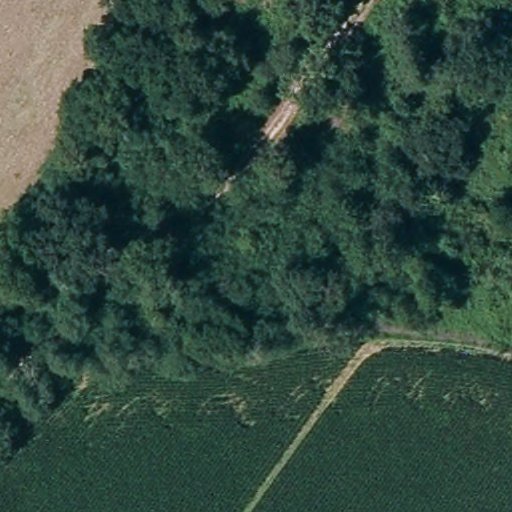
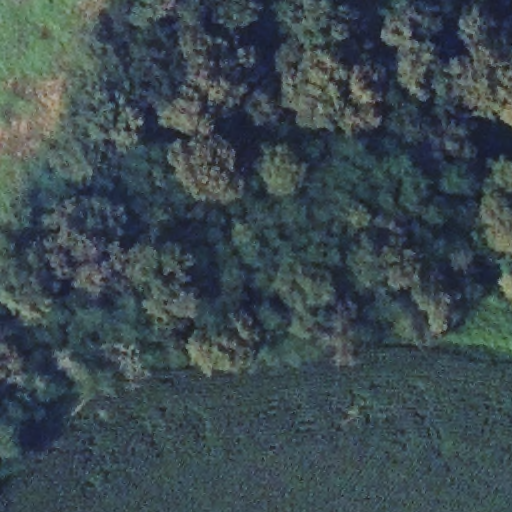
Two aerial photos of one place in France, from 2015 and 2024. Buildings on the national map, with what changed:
[]

